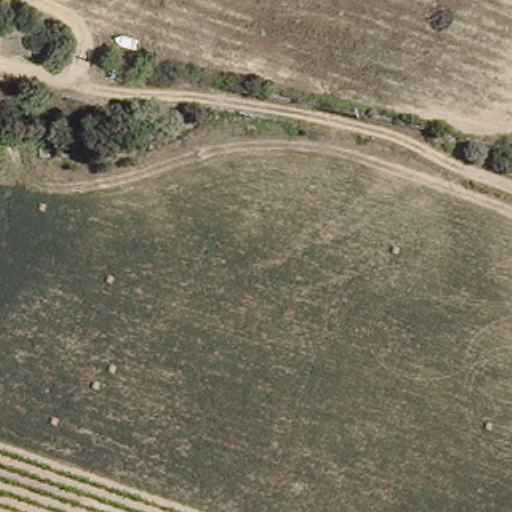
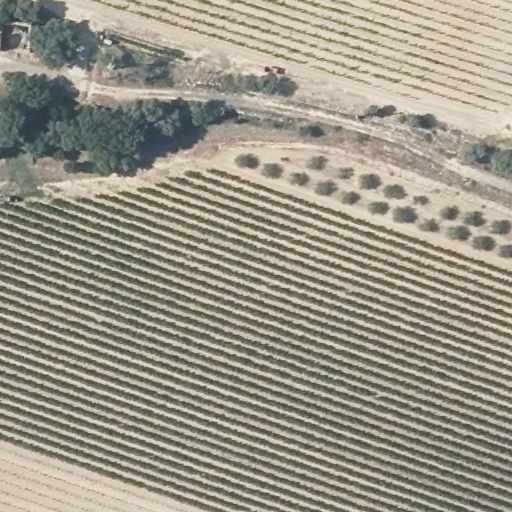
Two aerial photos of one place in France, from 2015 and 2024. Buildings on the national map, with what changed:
unchanged [(0,54),(0,47),(5,22),(36,25),(30,58),(0,54)]

